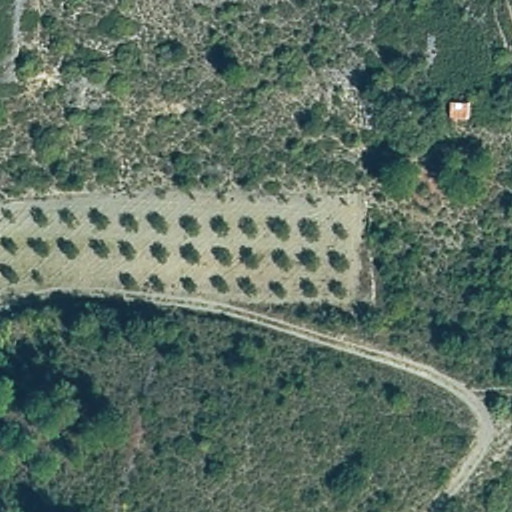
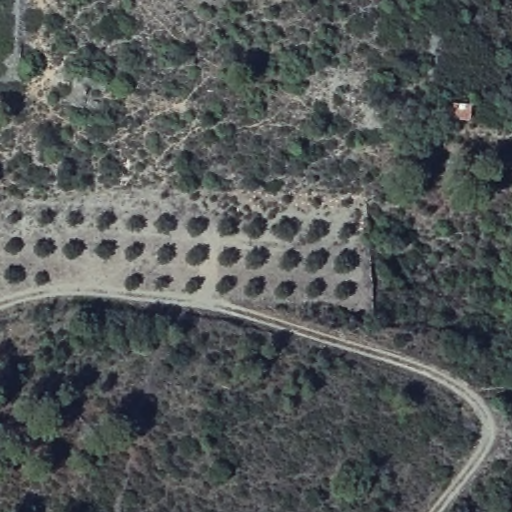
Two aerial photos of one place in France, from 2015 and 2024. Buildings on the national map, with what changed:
unchanged [(472,119),(449,118),(450,95),(475,99),(472,119)]

